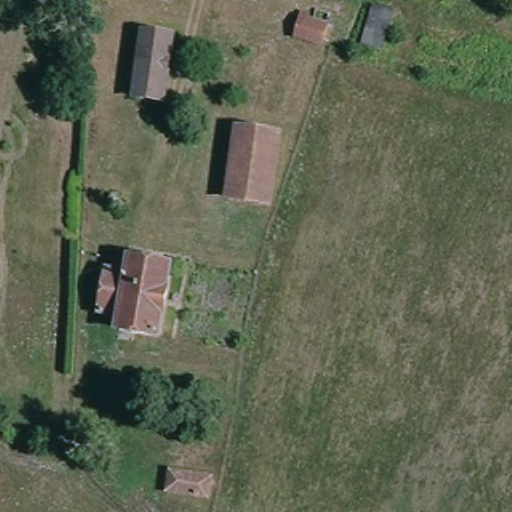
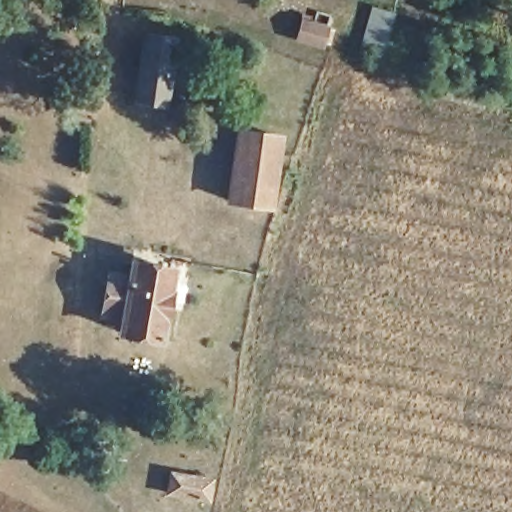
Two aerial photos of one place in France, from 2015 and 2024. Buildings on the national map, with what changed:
unchanged [(165,97),(131,89),(144,38),(177,47),(165,97)]
unchanged [(268,200),(229,189),(244,138),(285,147),(268,200)]
unchanged [(161,342),(119,334),(121,321),(105,317),(116,280),(129,283),(133,270),(176,280),(161,342)]
unchanged [(202,503),(201,503),(196,512),(194,512),(182,507),(187,497),(169,488),(179,466),(213,481),(202,503)]

